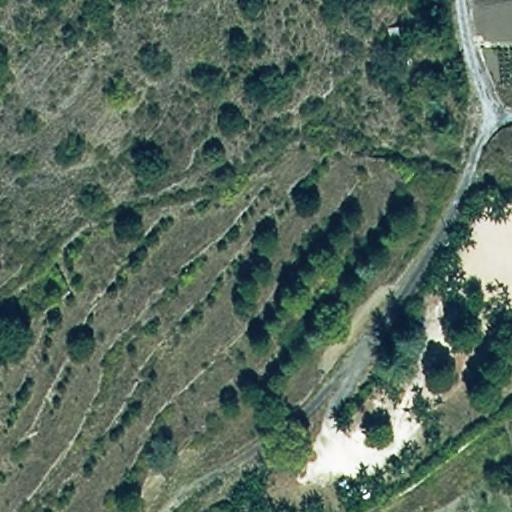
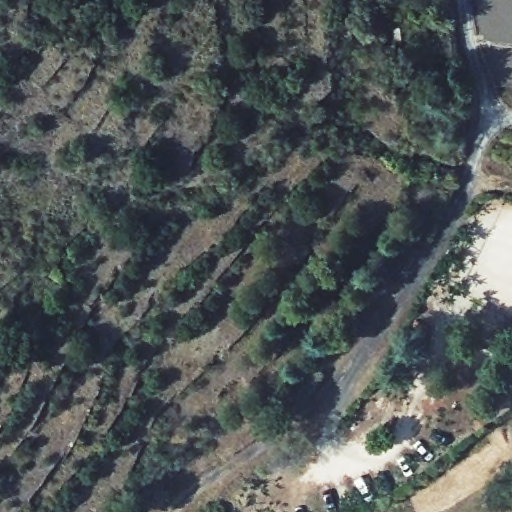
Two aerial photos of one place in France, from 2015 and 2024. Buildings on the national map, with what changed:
unchanged [(512,483),(512,498),(508,484),(512,483)]

